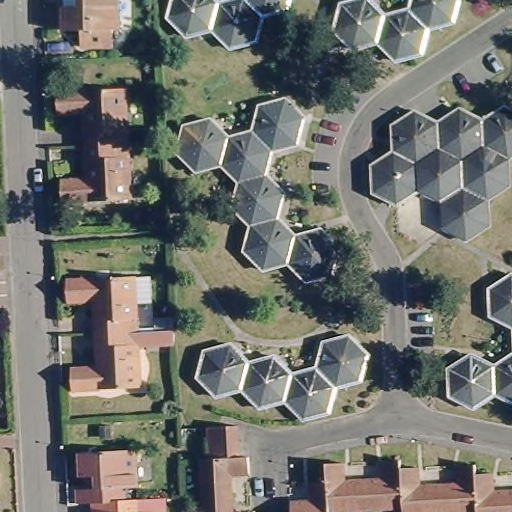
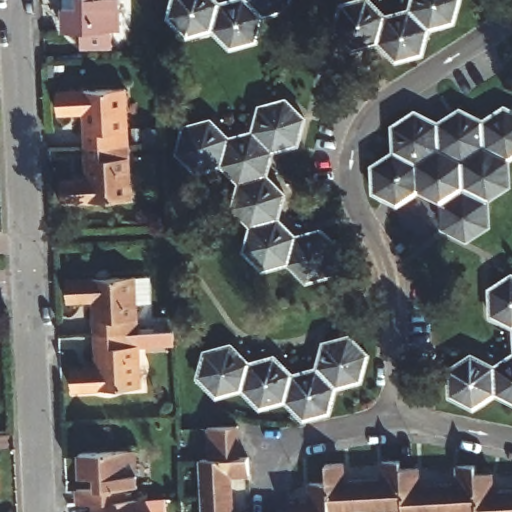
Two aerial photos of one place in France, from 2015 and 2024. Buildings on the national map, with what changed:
unchanged [(120,27),(112,27),(112,44),(78,44),(78,26),(62,26),(62,5),(75,5),(75,0),(119,0),(120,27)]
unchanged [(285,7),(260,14),(253,39),(227,46),(208,29),(185,35),(166,15),(170,0),(217,0),(287,0),(285,7)]
unchanged [(409,0),(458,0),(452,20),(427,27),(420,52),(396,60),(377,41),(351,48),(331,28),(337,3),(349,0),(369,0),(384,15),(407,8),(409,0)]
unchanged [(82,115),(57,115),(55,90),(127,88),(129,141),(83,143),(82,115)]
unchanged [(207,116),(225,135),(250,129),(257,105),(283,97),(302,116),(295,142),(270,149),(263,172),(282,191),(275,216),(293,235),(317,227),(337,247),(330,273),(303,280),(284,261),(260,268),(242,250),(248,225),(229,206),(237,180),(218,162),(193,170),(175,150),(182,125),(207,116)]
unchanged [(512,160),(512,185),(490,200),(491,227),(470,240),(445,227),(443,202),(421,190),(398,204),(375,192),(375,165),(395,152),(395,125),(417,110),(440,122),(462,109),(485,120),(507,106),(512,109),(512,160)]
unchanged [(132,195),(60,199),(60,177),(85,175),(83,143),(129,141),(132,195)]
unchanged [(511,352),(510,327),(487,315),(485,290),(509,274),(512,276),(512,403),(493,393),(472,407),(447,395),(445,368),(467,355),(488,365),(511,352)]
unchanged [(92,305),(67,305),(66,283),(137,280),(137,279),(149,279),(150,305),(138,305),(140,335),(94,337),(92,305)]
unchanged [(152,318),(170,317),(171,327),(172,332),(172,348),(140,350),(142,387),(72,391),(70,369),(95,367),(94,337),(140,335),(152,334),(152,318)]
unchanged [(287,400),(262,407),(245,388),(219,396),(199,375),(206,350),(233,342),(252,361),(276,355),(295,373),(318,366),(325,341),(352,333),(370,354),(363,380),(337,387),(331,411),(305,418),(287,400)]
unchanged [(202,463),(212,462),(211,447),(210,430),(238,430),(240,446),(240,460),(248,460),(250,480),(235,480),(235,496),(203,497),(202,463)]
unchanged [(77,493),(98,492),(97,478),(78,479),(77,455),(135,452),(137,490),(125,490),(126,505),(92,506),(78,507),(77,493)]
unchanged [(382,473),(381,460),(402,460),(402,469),(404,508),(367,510),(365,474),(382,473)]
unchanged [(330,478),(330,463),(350,462),(350,475),(365,474),(367,510),(331,512),(330,478)]
unchanged [(460,481),(460,466),(479,465),(480,480),(481,512),(444,512),(442,481),(460,481)]
unchanged [(422,468),(423,482),(442,481),(444,512),(404,512),(404,508),(402,469),(422,468)]
unchanged [(312,500),(310,480),(330,478),(331,512),(293,512),(292,500),(312,500)]
unchanged [(500,480),(500,494),(512,493),(512,512),(481,512),(480,480),(500,480)]
unchanged [(235,496),(236,512),(204,512),(203,497),(235,496)]
unchanged [(164,502),(165,512),(93,512),(92,506),(126,505),(139,504),(164,502)]

